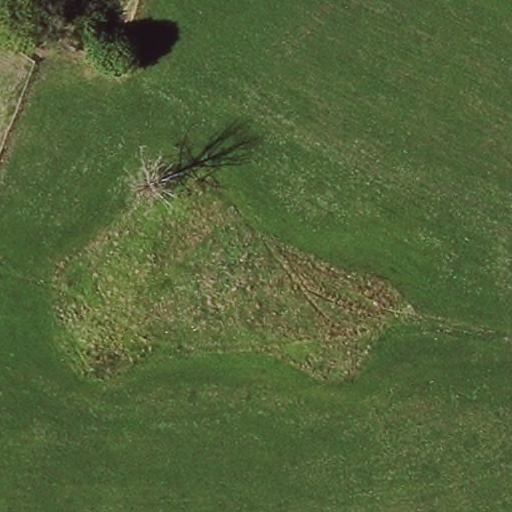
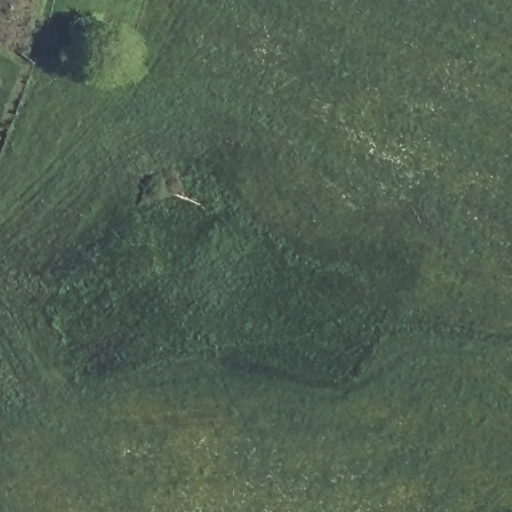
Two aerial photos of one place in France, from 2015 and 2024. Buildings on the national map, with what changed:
[]

